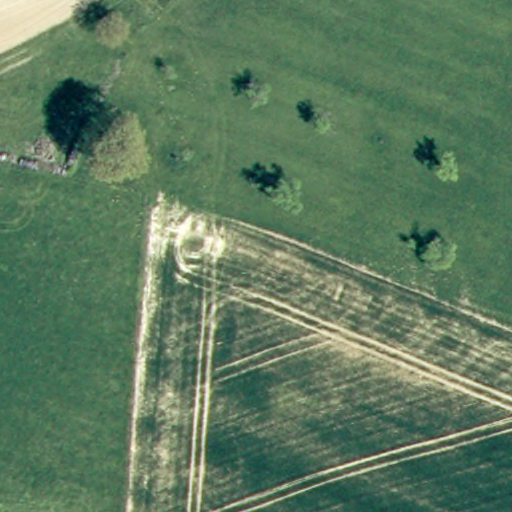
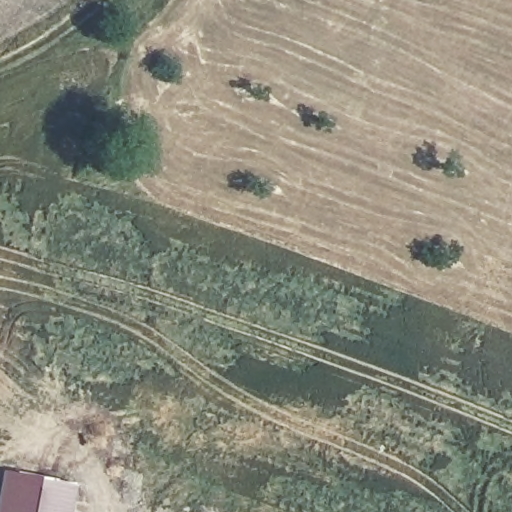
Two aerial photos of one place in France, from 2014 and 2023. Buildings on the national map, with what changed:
new [(73,482),(68,512),(0,512),(0,483),(2,470),(73,482)]

